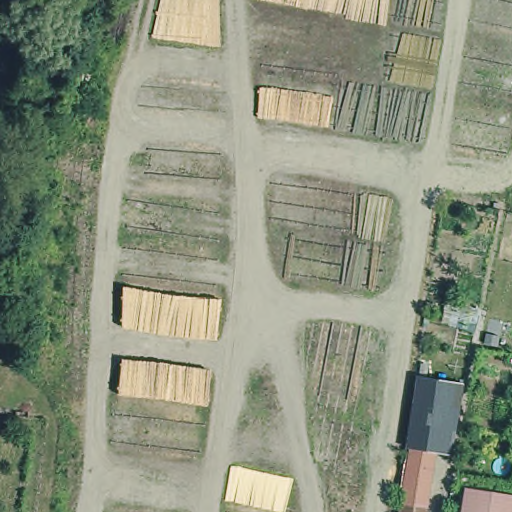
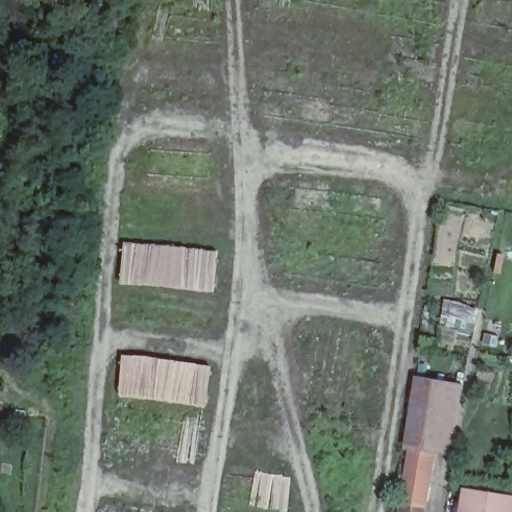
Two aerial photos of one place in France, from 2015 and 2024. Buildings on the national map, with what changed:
unchanged [(453,386),(445,436),(412,430),(420,381),(453,386)]
unchanged [(412,453),(413,448),(428,451),(427,456),(437,458),(434,480),(428,512),(402,512),(408,476),(412,453)]
unchanged [(512,496),(512,512),(470,512),(473,491),(512,496)]

